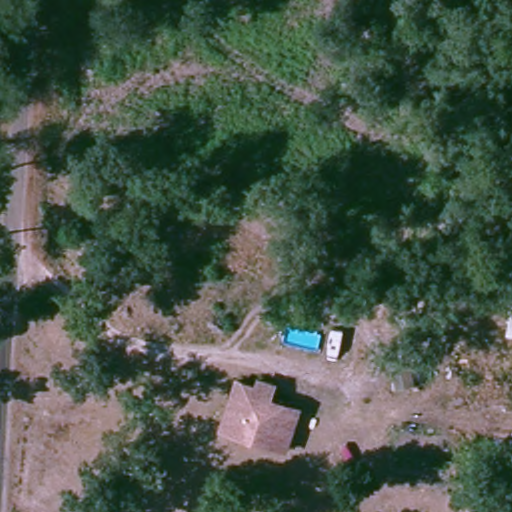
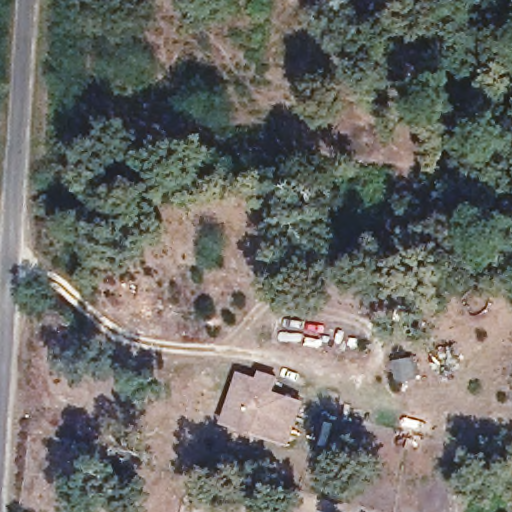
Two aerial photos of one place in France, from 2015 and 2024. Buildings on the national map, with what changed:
unchanged [(242,377),(261,383),(263,375),(276,380),(272,396),(302,405),(291,443),(226,423),(242,377)]

